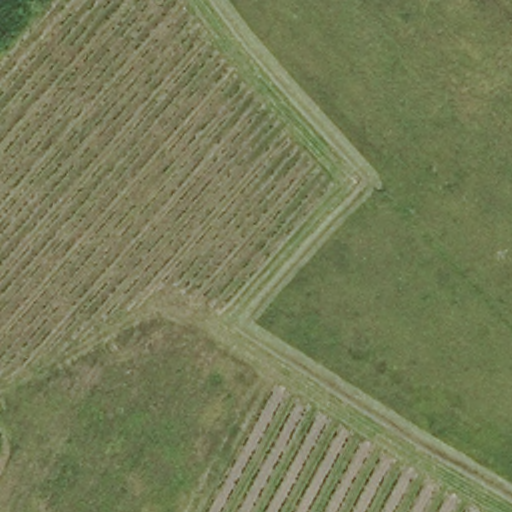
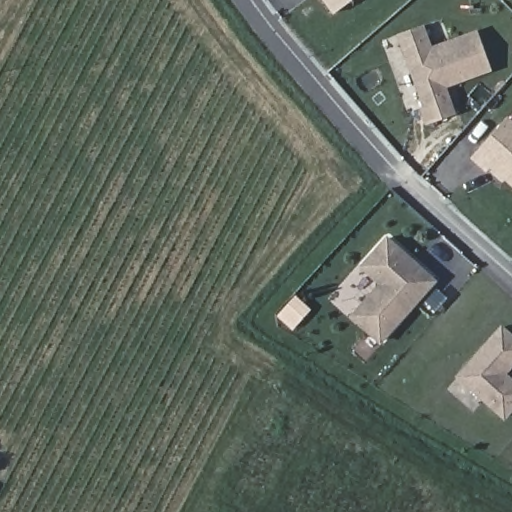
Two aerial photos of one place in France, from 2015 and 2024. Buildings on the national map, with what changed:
new [(335,12),(327,0),(352,0),(335,12)]
new [(425,106),(399,33),(427,23),(434,45),(479,28),(494,70),(449,86),(458,113),(427,123),(421,108),(425,106)]
new [(512,121),(512,181),(492,162),(487,168),(475,156),(510,118),(512,121)]
new [(382,344),(351,315),(380,282),(361,265),(389,234),(439,279),(382,344)]
new [(458,375),(504,325),(512,333),(512,369),(509,372),(512,376),(512,412),(506,419),(458,375)]

